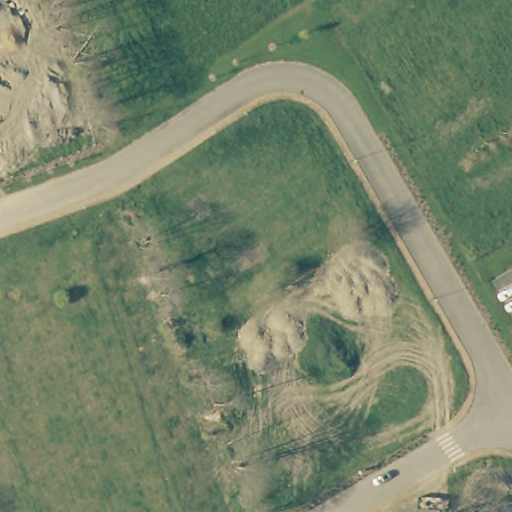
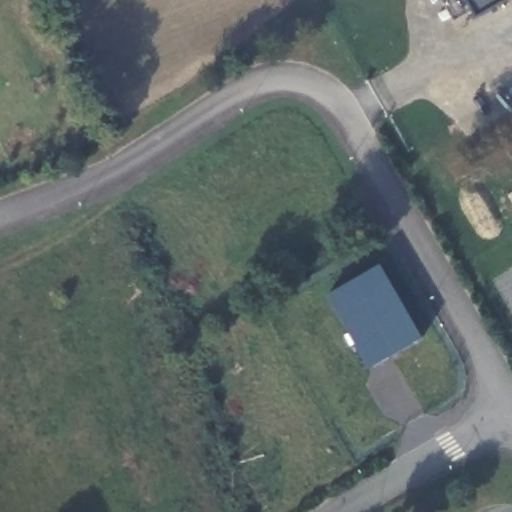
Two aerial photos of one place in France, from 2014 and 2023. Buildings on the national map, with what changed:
new [(368,369),(325,297),(379,266),(421,339),(368,369)]

